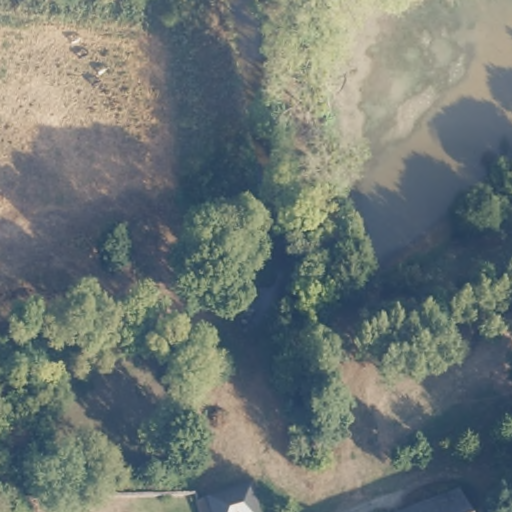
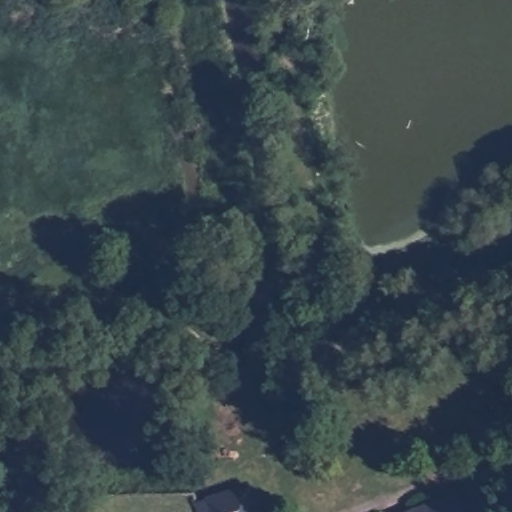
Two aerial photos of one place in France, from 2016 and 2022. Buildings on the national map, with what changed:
unchanged [(13,487),(0,496),(0,474),(2,472),(13,487)]
unchanged [(199,497),(254,477),(263,512),(217,512),(216,508),(207,512),(204,512),(199,497)]
unchanged [(461,491),(469,512),(408,512),(461,491)]

